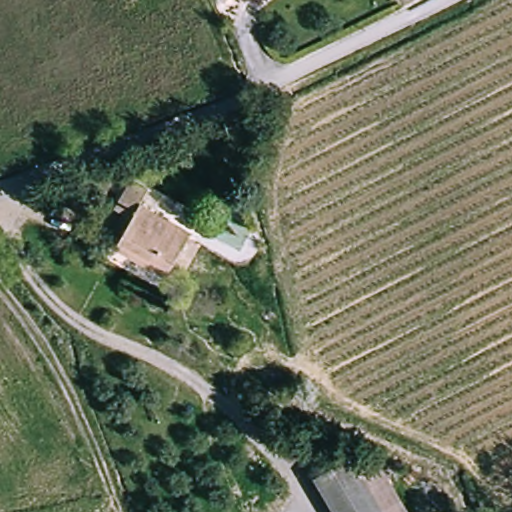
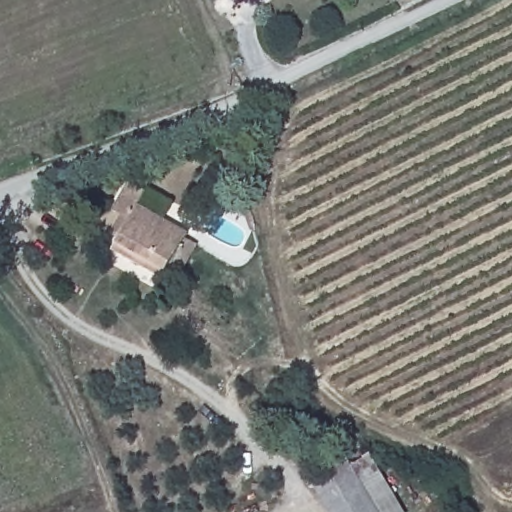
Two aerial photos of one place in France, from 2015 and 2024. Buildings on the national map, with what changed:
unchanged [(156,192),(147,207),(196,236),(172,277),(122,249),(127,240),(123,237),(116,233),(128,215),(121,209),(138,181),(156,192)]
unchanged [(351,460),(358,471),(375,462),(406,512),(331,512),(313,481),(351,460)]

